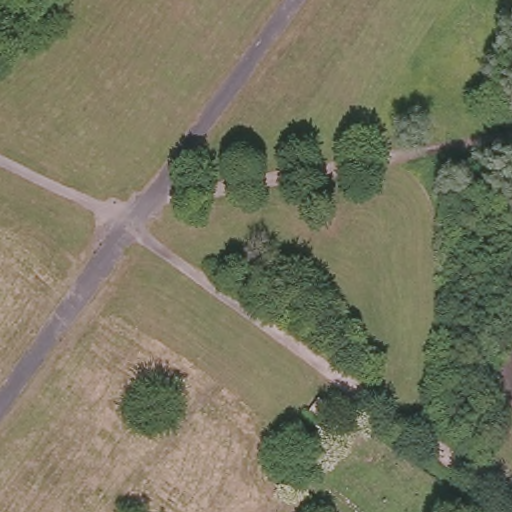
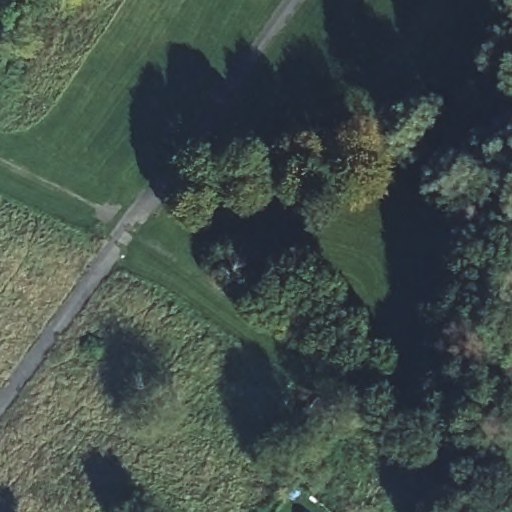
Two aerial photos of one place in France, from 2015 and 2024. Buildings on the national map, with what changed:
unchanged [(330,408),(319,422),(305,412),(315,398),(330,408)]

